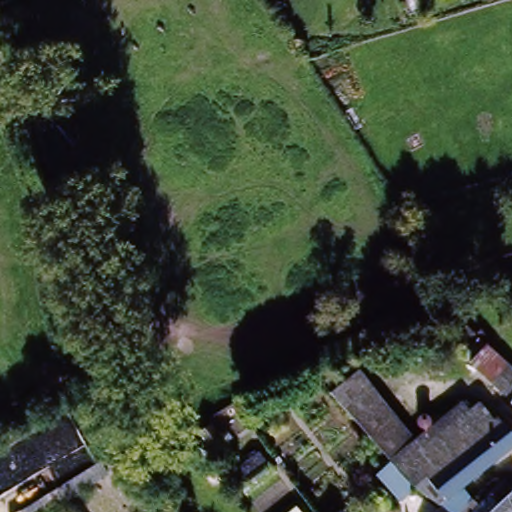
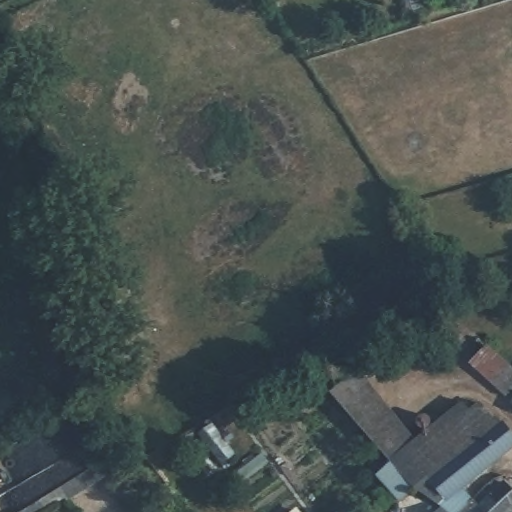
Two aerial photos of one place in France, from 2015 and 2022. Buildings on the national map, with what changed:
unchanged [(503,349),(512,361),(512,390),(506,395),(478,360),(490,349),(497,343),(503,349)]
unchanged [(441,507),(419,484),(400,501),(375,473),(389,461),(331,391),(361,367),(406,427),(422,412),(432,426),(463,400),(471,410),(479,401),(512,437),(512,444),(465,486),(480,502),(470,512),(436,512),(441,507)]
unchanged [(103,472),(110,482),(71,509),(68,505),(58,512),(44,512),(103,472)]
unchanged [(504,479),(512,487),(512,505),(505,512),(470,512),(480,502),(504,479)]

